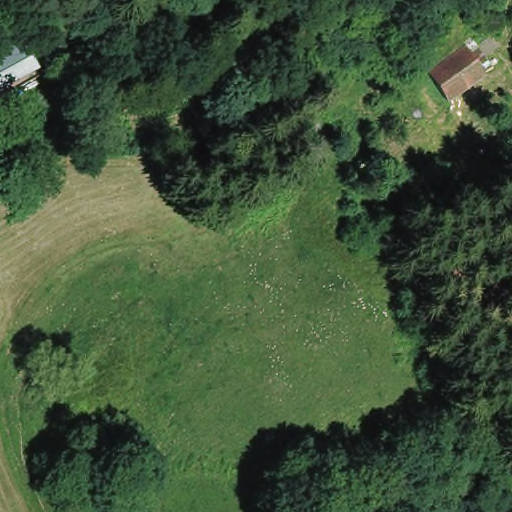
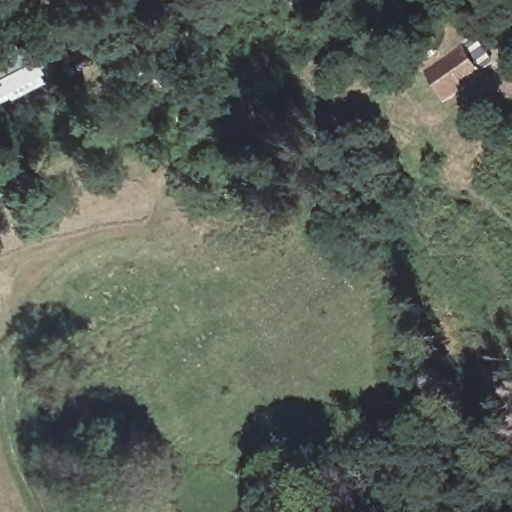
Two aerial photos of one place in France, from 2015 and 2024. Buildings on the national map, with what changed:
unchanged [(480,64),(474,69),(480,76),(442,103),(425,78),(460,50),(467,59),(474,54),(480,64)]
unchanged [(0,95),(0,55),(5,52),(13,63),(20,57),(31,74),(0,95)]

